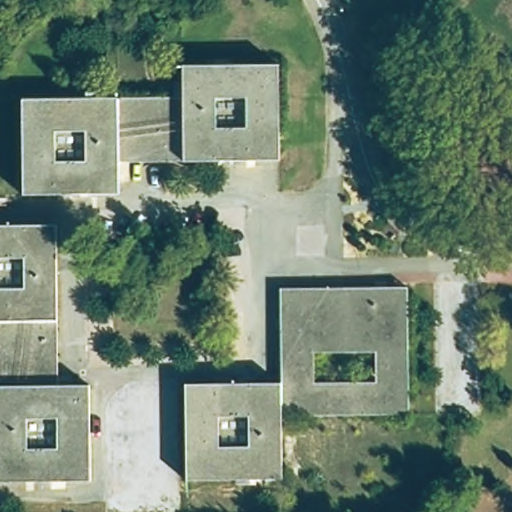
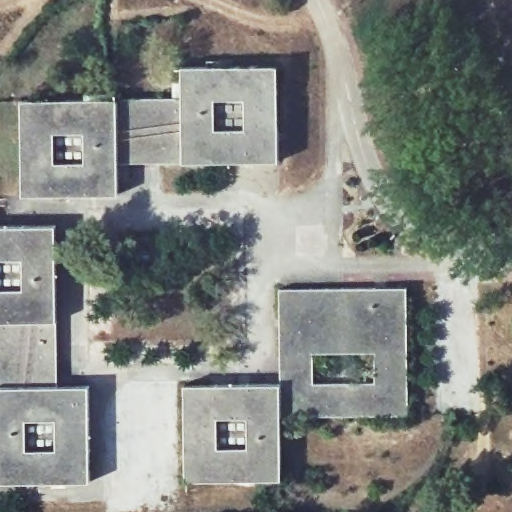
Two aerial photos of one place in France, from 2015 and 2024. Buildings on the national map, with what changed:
unchanged [(179,96),(179,61),(275,60),(276,158),(117,162),(118,193),(25,196),(24,101),(179,96)]
unchanged [(54,388),(85,388),(87,482),(0,483),(0,230),(51,229),(54,388)]
unchanged [(279,383),(277,287),(408,285),(410,410),(280,413),(281,480),(182,482),(181,387),(279,383)]

